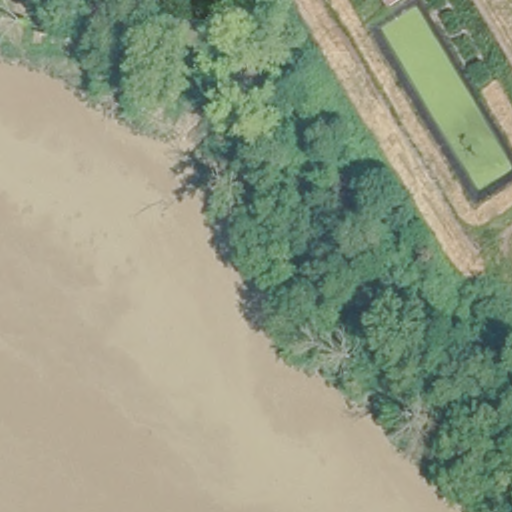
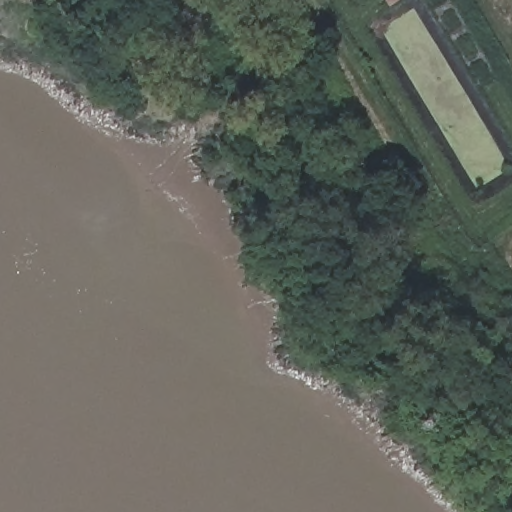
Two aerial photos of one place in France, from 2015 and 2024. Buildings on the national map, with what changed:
unchanged [(84,0),(128,0),(95,19),(84,0)]

